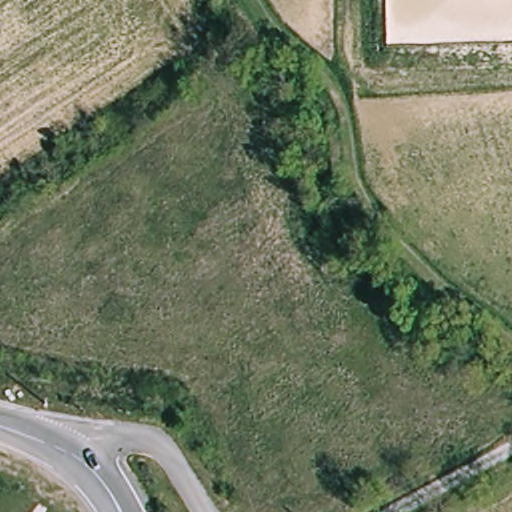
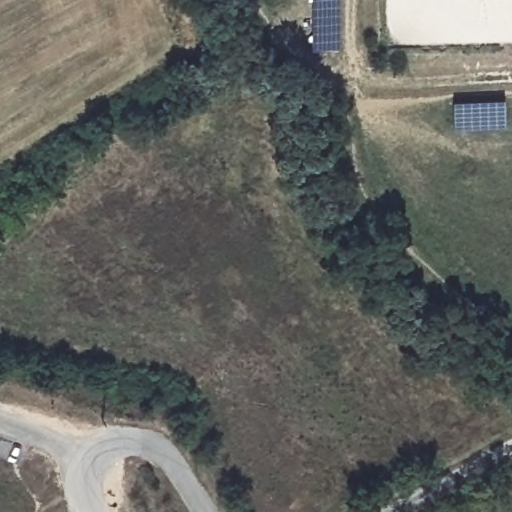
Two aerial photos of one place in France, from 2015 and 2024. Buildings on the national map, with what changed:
new [(347,0),(347,49),(322,49),(322,0),(347,0)]
new [(459,101),(509,100),(509,125),(459,126),(459,101)]

